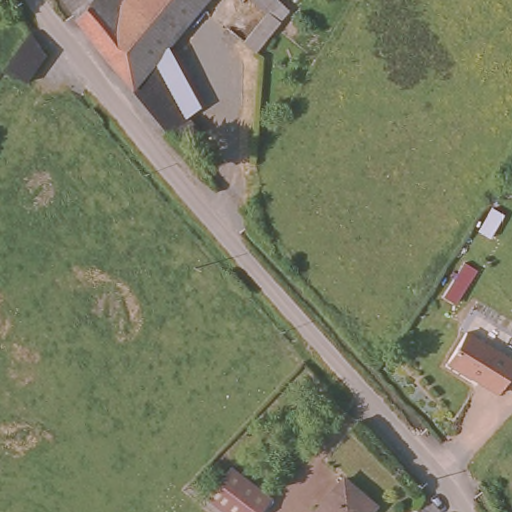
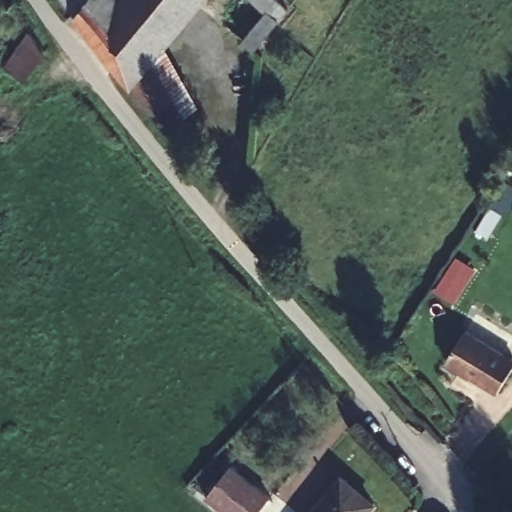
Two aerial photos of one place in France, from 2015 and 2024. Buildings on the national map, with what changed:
unchanged [(79,0),(97,0),(87,12),(79,0)]
unchanged [(87,12),(97,0),(127,0),(98,34),(82,16),(87,12)]
unchanged [(98,34),(127,0),(212,0),(162,57),(140,84),(98,34)]
unchanged [(256,54),(244,42),(266,11),(253,0),(283,0),(292,9),(256,54)]
unchanged [(173,122),(140,84),(162,57),(194,112),(177,127),(173,122)]
unchanged [(512,356),(512,372),(501,392),(447,361),(469,327),(512,356)]
unchanged [(207,498),(234,467),(272,500),(262,512),(224,512),(207,498)]
unchanged [(373,512),(317,512),(340,483),(373,511),(373,512)]

